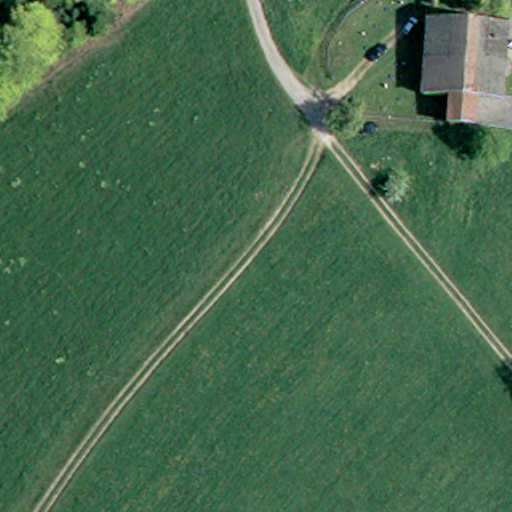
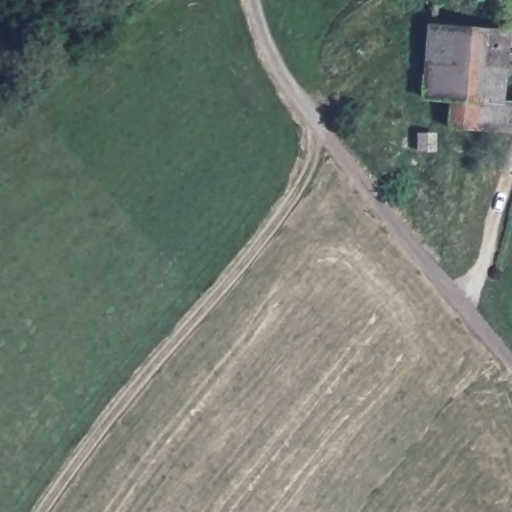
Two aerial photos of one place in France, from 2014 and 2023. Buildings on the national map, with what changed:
unchanged [(420,104),(425,26),(512,31),(512,54),(501,54),(497,110),(505,110),(505,150),(462,144),(443,141),(444,105),(420,104)]

